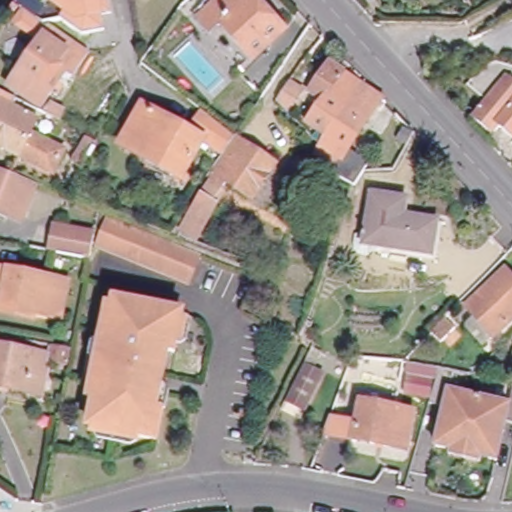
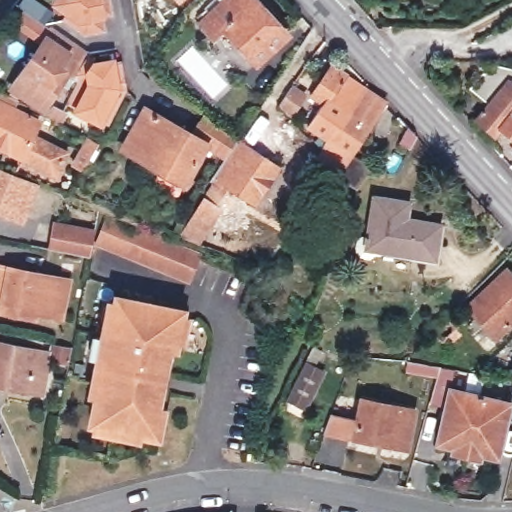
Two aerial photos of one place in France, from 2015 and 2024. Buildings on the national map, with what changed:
unchanged [(50,11),(41,24),(51,31),(41,45),(11,25),(16,18),(9,12),(16,2),(19,4),(21,0),(34,0),(50,11)]
unchanged [(111,18),(106,18),(106,20),(104,22),(106,34),(82,36),(61,21),(65,15),(51,5),(54,0),(108,0),(111,18)]
unchanged [(257,62),(225,27),(216,36),(205,24),(206,23),(201,15),(210,7),(214,13),(226,2),(224,0),(258,0),(287,32),(257,62)]
unchanged [(64,89),(57,100),(52,96),(41,110),(10,88),(41,45),(51,31),(53,32),(87,57),(87,58),(72,77),(69,80),(63,88),(64,89)]
new [(101,61),(114,59),(120,58),(126,91),(110,125),(103,120),(99,126),(72,112),(74,107),(67,105),(79,81),(72,77),(87,58),(87,57),(101,61)]
unchanged [(491,106),(471,89),(494,62),(512,66),(512,80),(511,82),(512,83),(512,115),(501,128),(496,134),(479,120),(491,106)]
unchanged [(331,137),(311,123),(328,95),(318,89),(334,64),(364,86),(331,137)]
unchanged [(294,83),(309,93),(297,113),(295,117),(281,103),(282,102),(294,83)]
unchanged [(324,148),(331,137),(364,86),(386,99),(342,169),(319,155),(324,148)]
unchanged [(19,101),(15,108),(41,122),(36,132),(65,145),(51,170),(0,146),(0,91),(19,101)]
unchanged [(67,115),(62,123),(46,115),(57,110),(64,113),(67,115)]
unchanged [(229,157),(210,146),(186,186),(127,150),(148,111),(195,139),(208,118),(240,141),(229,157)]
unchanged [(512,115),(512,137),(501,128),(512,115)]
unchanged [(86,160),(99,139),(110,145),(97,166),(86,160)]
unchanged [(279,168),(255,205),(229,187),(216,206),(220,208),(200,242),(184,234),(215,184),(212,181),(229,157),(240,141),(279,168)]
unchanged [(333,196),(298,177),(308,160),(341,181),(333,196)]
unchanged [(23,217),(0,208),(0,168),(35,184),(23,217)]
unchanged [(437,261),(430,260),(362,249),(369,198),(404,204),(402,219),(434,224),(441,225),(437,261)]
unchanged [(198,277),(105,240),(114,214),(207,251),(198,277)]
unchanged [(62,223),(69,224),(101,228),(97,253),(60,246),(62,223)]
unchanged [(59,314),(52,313),(0,304),(0,264),(59,276),(66,276),(59,314)]
unchanged [(466,312),(504,276),(512,285),(512,323),(492,342),(466,312)]
unchanged [(168,404),(162,410),(157,438),(91,426),(96,398),(91,397),(96,373),(90,372),(85,368),(90,343),(94,341),(101,342),(102,336),(108,337),(109,328),(103,327),(97,320),(100,307),(105,304),(113,305),(114,299),(181,312),(180,315),(185,316),(190,322),(186,340),(179,342),(175,341),(174,351),(166,350),(160,381),(165,382),(170,389),(168,404)]
unchanged [(453,314),(463,325),(448,337),(440,327),(453,314)]
unchanged [(49,344),(49,350),(11,342),(12,337),(49,344)]
unchanged [(55,353),(56,345),(76,348),(73,364),(54,359),(48,393),(0,385),(0,343),(55,353)]
unchanged [(454,441),(438,438),(445,399),(433,396),(407,391),(411,367),(438,371),(444,348),(458,351),(454,370),(512,382),(512,412),(511,412),(503,451),(489,448),(487,457),(469,453),(452,449),(454,441)]
unchanged [(289,396),(307,359),(316,363),(323,367),(319,377),(307,405),(289,396)]
unchanged [(357,418),(360,399),(415,410),(409,447),(354,437),(326,432),(332,413),(357,418)]

